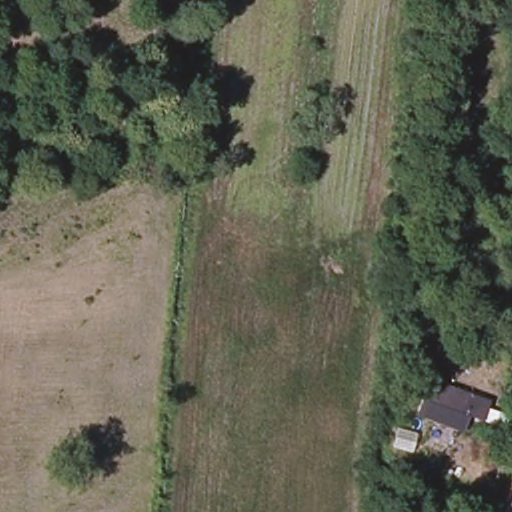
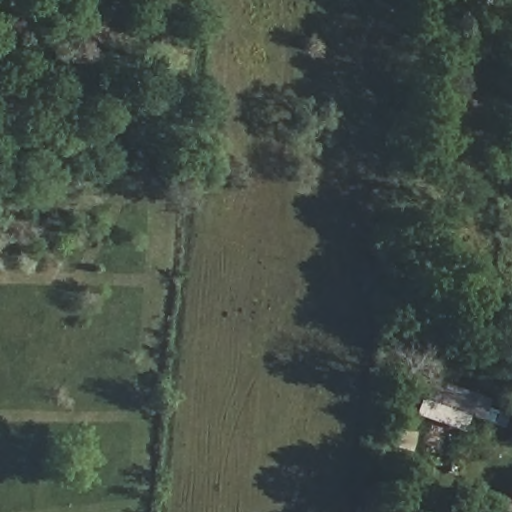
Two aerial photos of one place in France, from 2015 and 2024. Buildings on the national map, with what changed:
unchanged [(480,424),(469,421),(460,439),(414,422),(427,384),(489,406),(480,424)]
unchanged [(512,500),(512,512),(505,512),(512,500)]

